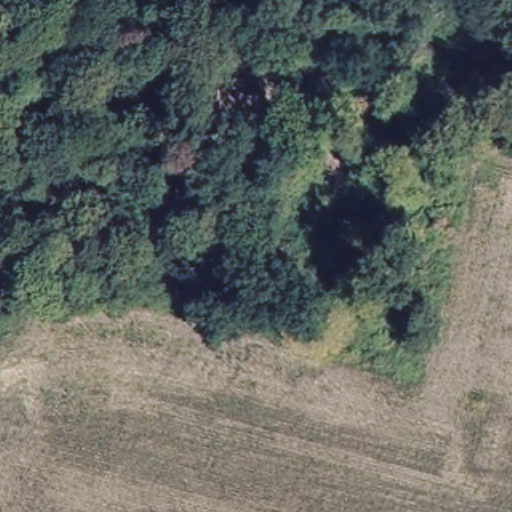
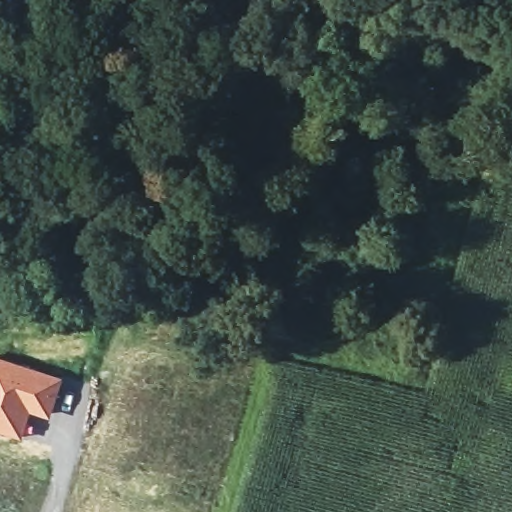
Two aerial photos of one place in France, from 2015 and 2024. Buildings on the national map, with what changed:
new [(65,377),(50,420),(32,413),(22,441),(0,434),(0,355),(65,377)]

